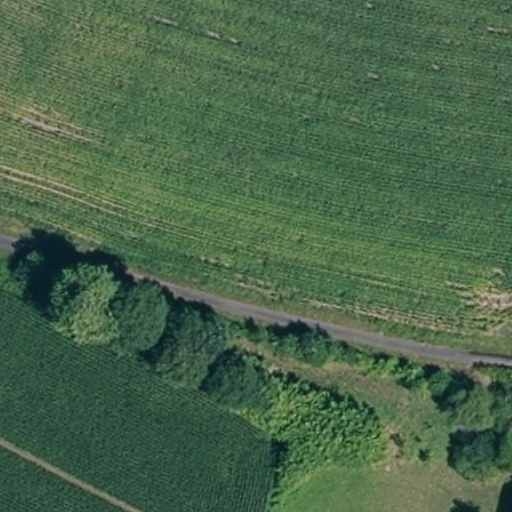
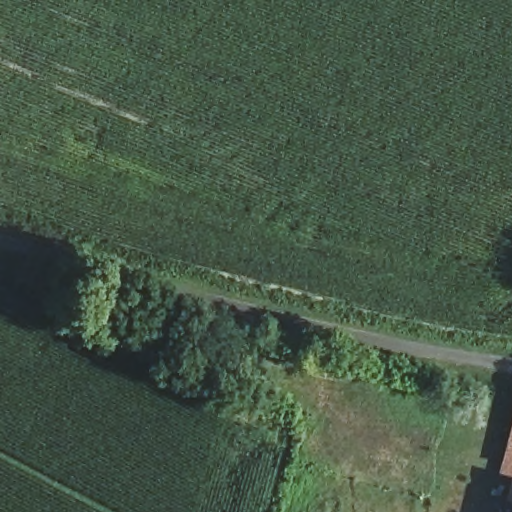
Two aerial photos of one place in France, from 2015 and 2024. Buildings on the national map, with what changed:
new [(512,479),(499,475),(512,424),(512,504),(505,502),(512,479)]
demolished [(507,467),(512,443),(512,468),(507,467)]

